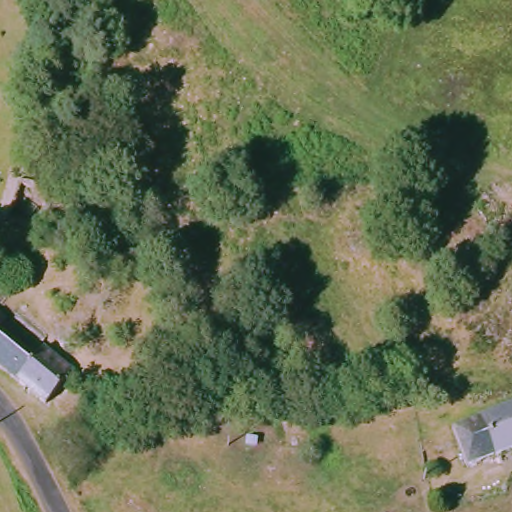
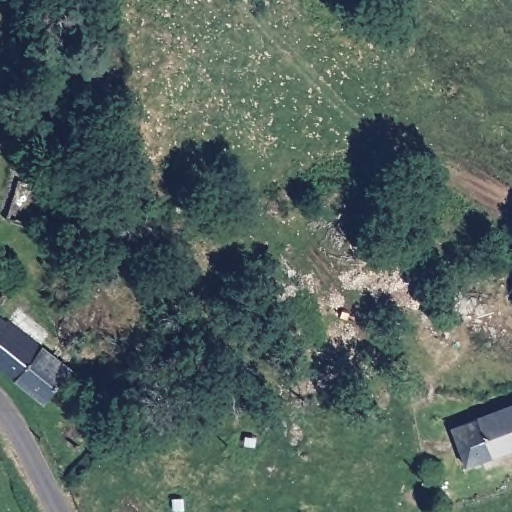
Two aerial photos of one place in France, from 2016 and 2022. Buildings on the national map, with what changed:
unchanged [(47,192),(34,231),(3,220),(16,181),(47,192)]
unchanged [(72,379),(45,410),(0,371),(0,316),(72,379)]
unchanged [(446,425),(463,418),(512,399),(512,456),(464,474),(446,425)]

